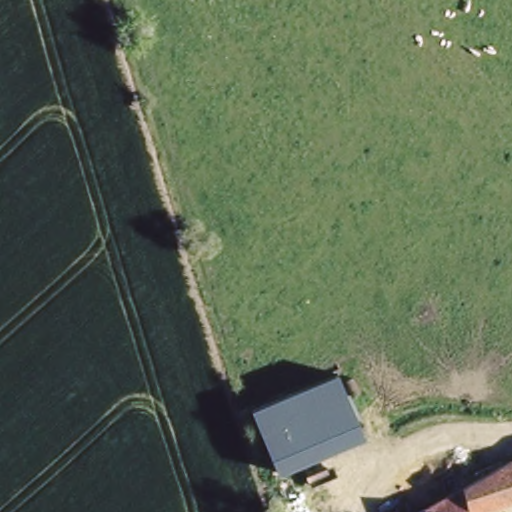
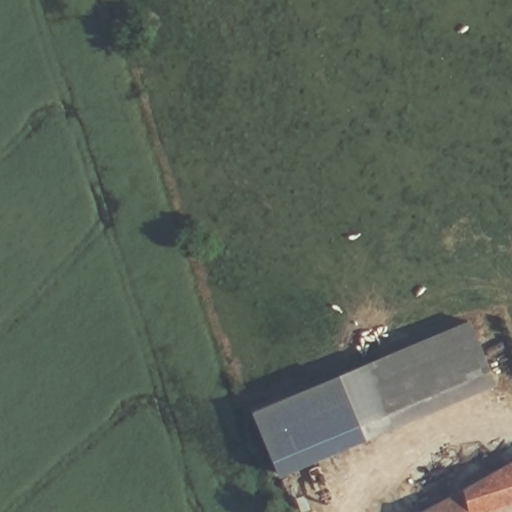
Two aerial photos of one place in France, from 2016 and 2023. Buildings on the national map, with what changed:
new [(365,437),(336,372),(469,317),(497,383),(365,437)]
unchanged [(336,372),(365,437),(278,471),(250,407),(336,372)]
unchanged [(413,512),(461,492),(460,485),(499,465),(512,461),(512,501),(476,512),(414,512),(413,512)]

